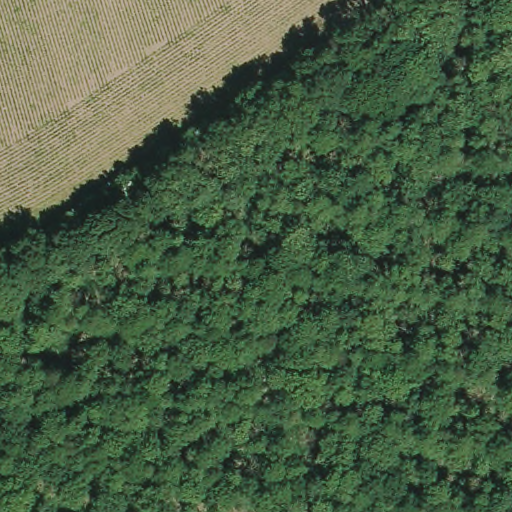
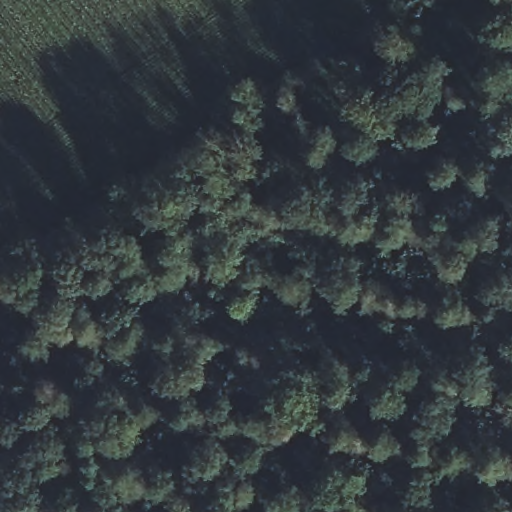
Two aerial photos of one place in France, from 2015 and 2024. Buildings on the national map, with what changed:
[]

